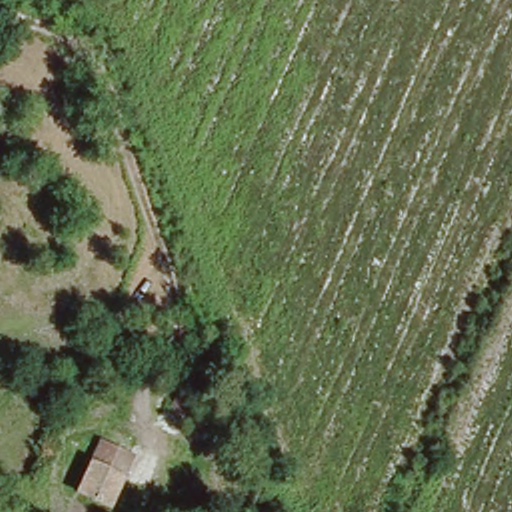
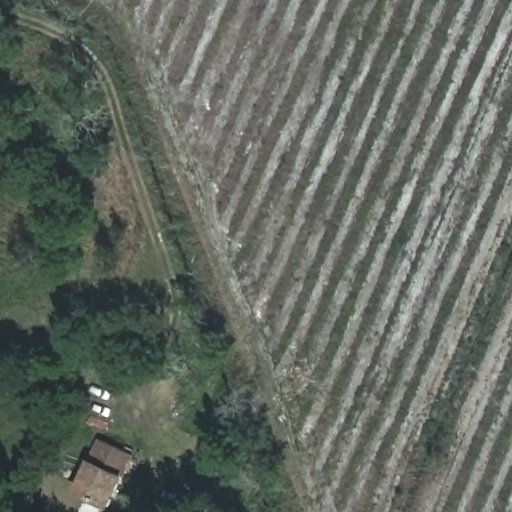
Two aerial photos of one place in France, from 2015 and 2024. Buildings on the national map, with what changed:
unchanged [(117,445),(115,461),(125,464),(115,495),(86,486),(101,441),(117,445)]

